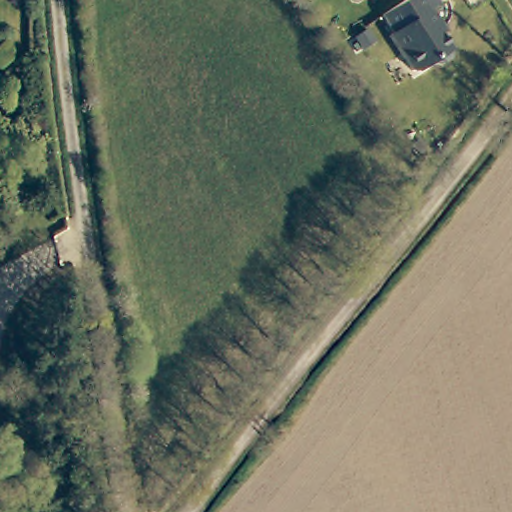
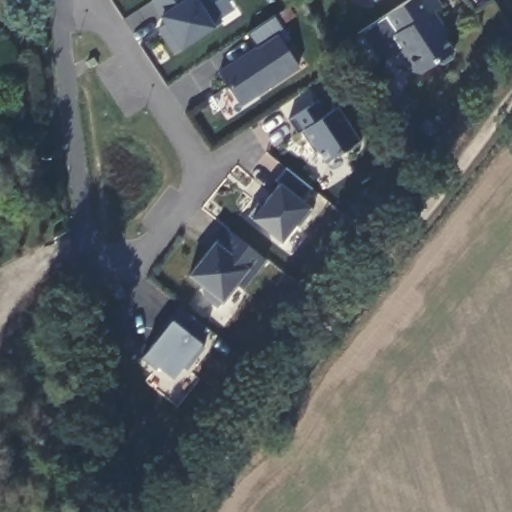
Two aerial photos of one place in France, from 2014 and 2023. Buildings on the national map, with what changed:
new [(153,0),(210,0),(221,20),(214,26),(216,28),(182,49),(174,52),(159,27),(166,24),(160,14),(151,1),(153,0)]
unchanged [(436,3),(446,16),(441,20),(457,42),(457,49),(448,55),(440,55),(426,65),(419,65),(395,30),(398,27),(386,10),(400,0),(441,0),(436,3)]
new [(278,15),(286,29),(278,33),(301,66),(242,105),(219,70),(255,45),(248,34),(278,15)]
new [(297,114),(319,100),(327,114),(338,106),(359,139),(325,164),(317,152),(315,154),(301,131),(296,134),(288,120),(297,114)]
new [(260,202),(263,206),(280,183),(277,180),(287,167),(312,188),(302,200),(310,207),(282,242),(252,217),(249,215),(260,202)]
new [(216,240),(220,243),(229,230),(267,260),(243,290),(235,285),(222,302),(216,307),(201,295),(201,285),(189,275),(216,240)]
new [(197,339),(201,343),(173,378),(143,355),(155,340),(152,338),(179,305),(206,327),(197,339)]

